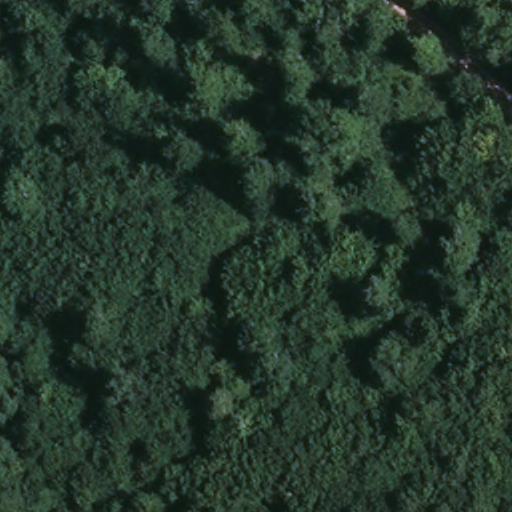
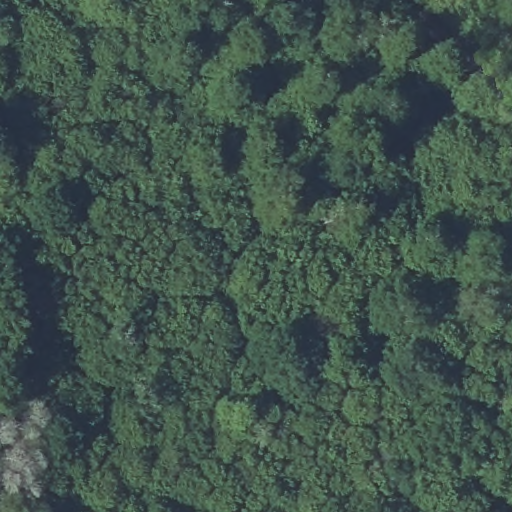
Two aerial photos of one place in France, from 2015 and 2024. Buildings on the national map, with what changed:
[]

